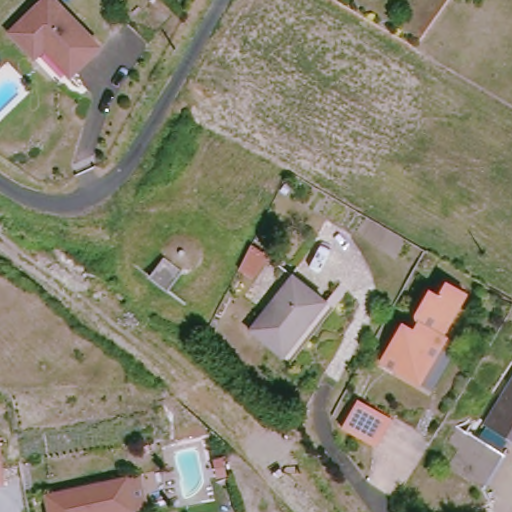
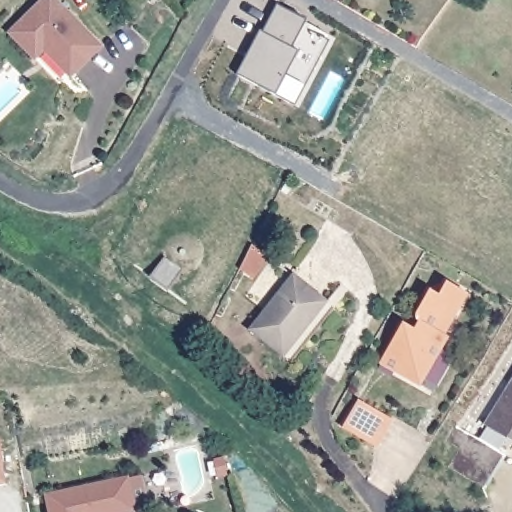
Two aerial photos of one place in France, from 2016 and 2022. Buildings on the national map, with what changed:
unchanged [(44,50),(35,59),(7,34),(42,0),(62,0),(104,42),(75,71),(70,75),(44,50)]
new [(276,95),(237,75),(260,31),(262,33),(277,5),(307,21),(304,25),(329,41),(315,88),(295,105),(276,95)]
unchanged [(327,306),(285,358),(244,328),(286,273),(327,306)]
unchanged [(386,345),(401,322),(410,328),(417,316),(412,314),(427,290),(436,295),(444,282),(464,294),(440,335),(445,338),(417,384),(391,370),(376,361),(386,345)]
unchanged [(502,400),(512,387),(512,433),(510,431),(507,435),(486,417),(500,397),(502,400)]
unchanged [(352,399),(384,417),(367,445),(337,427),(352,399)]
unchanged [(497,450),(472,481),(441,455),(466,425),(497,450)]
unchanged [(132,509),(119,512),(48,512),(44,493),(124,476),(132,509)]

